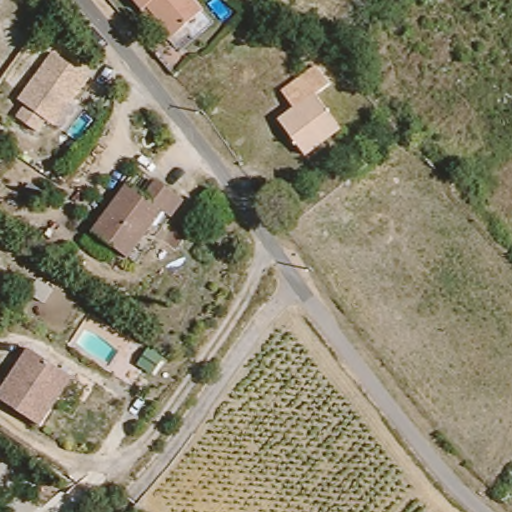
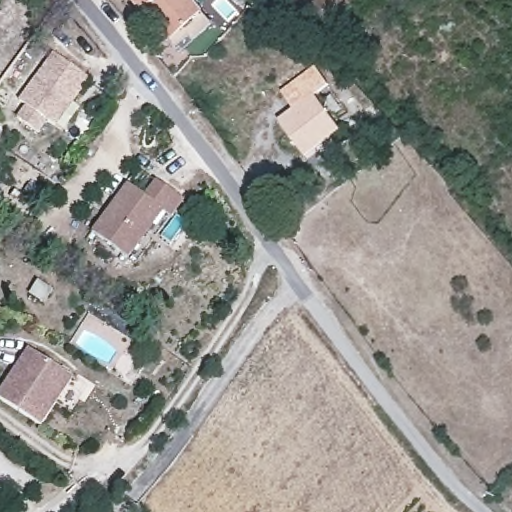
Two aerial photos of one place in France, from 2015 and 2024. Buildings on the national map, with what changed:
unchanged [(152,18),(145,21),(127,0),(189,0),(200,14),(208,22),(178,46),(170,39),(152,18)]
unchanged [(93,75),(57,128),(47,122),(39,132),(16,117),(25,105),(18,101),(54,51),(93,75)]
unchanged [(282,90),(316,66),(329,81),(315,93),(341,125),(329,136),(308,154),(281,118),(295,106),(282,90)]
unchanged [(87,232),(122,187),(135,197),(147,182),(179,205),(165,220),(130,265),(122,258),(87,232)]
unchanged [(63,291),(54,303),(40,293),(49,281),(63,291)]
unchanged [(70,377),(40,428),(0,404),(0,388),(25,352),(70,377)]

